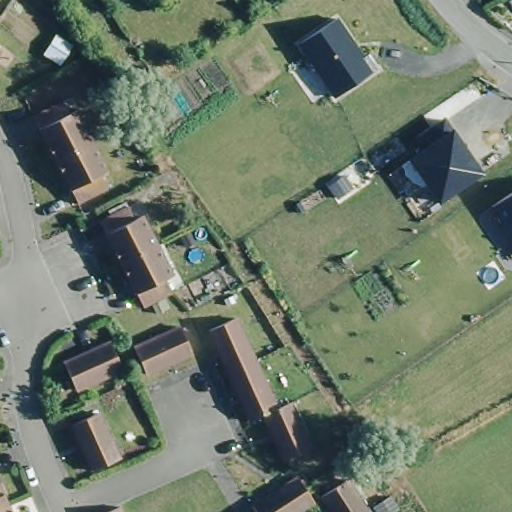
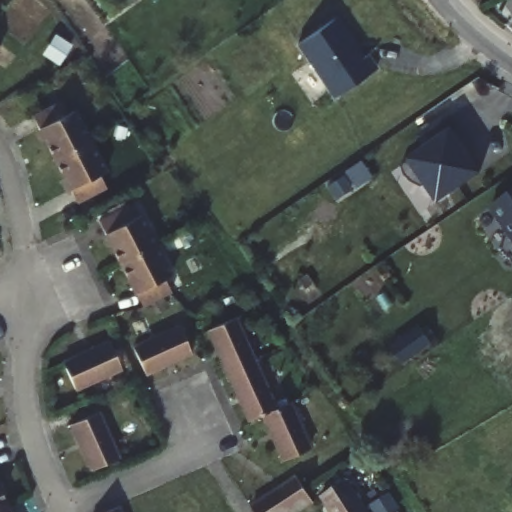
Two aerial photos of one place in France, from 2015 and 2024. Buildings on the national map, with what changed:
unchanged [(373,62),(332,91),(294,38),(331,12),(348,36),(359,51),(363,48),(373,62)]
unchanged [(3,47),(0,51),(0,45),(3,47)]
unchanged [(53,158),(29,115),(58,100),(64,113),(71,110),(88,140),(53,158)]
unchanged [(417,149),(410,139),(444,116),(484,174),(438,206),(406,158),(417,149)]
unchanged [(104,169),(97,173),(104,186),(75,202),(53,158),(88,140),(104,169)]
unchanged [(512,192),(512,240),(489,207),(512,192)]
unchanged [(95,220),(122,205),(130,217),(137,215),(151,242),(118,261),(95,220)]
unchanged [(151,242),(168,273),(161,277),(168,290),(141,304),(118,261),(151,242)]
unchanged [(258,411),(246,416),(204,328),(231,316),(273,404),(258,411)]
unchanged [(193,354),(148,375),(136,349),(181,329),(193,354)]
unchanged [(118,370),(73,392),(61,366),(106,344),(118,370)]
unchanged [(285,399),(307,445),(281,457),(258,411),(273,404),(285,399)]
unchanged [(114,454),(88,467),(88,465),(68,422),(94,410),(114,454)]
unchanged [(299,512),(257,512),(254,507),(298,479),(314,501),(299,512)]
unchanged [(346,481),(366,512),(331,512),(321,497),(346,481)]
unchanged [(1,502),(0,503),(0,499),(1,502)]
unchanged [(0,512),(0,503),(1,502),(6,512),(0,512)]
unchanged [(118,512),(100,512),(115,505),(118,512)]

